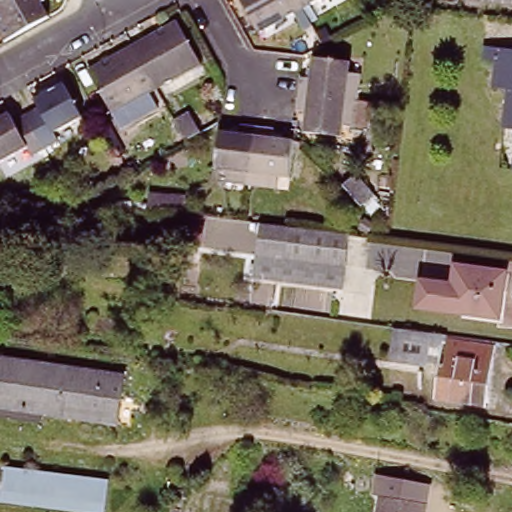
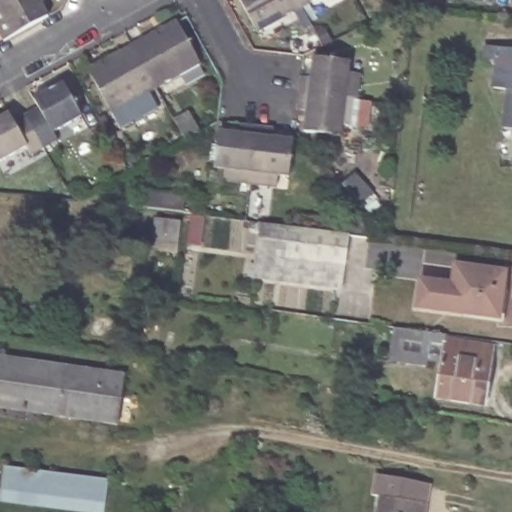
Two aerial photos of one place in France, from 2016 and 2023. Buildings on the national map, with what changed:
unchanged [(37,2),(46,17),(2,42),(0,39),(0,7),(0,0),(42,0),(37,2)]
unchanged [(300,31),(290,14),(253,34),(235,0),(315,0),(298,9),(307,27),(300,31)]
unchanged [(175,19),(200,64),(155,89),(131,43),(175,19)]
unchanged [(131,43),(155,89),(110,113),(87,68),(131,43)]
unchanged [(502,129),(507,90),(492,88),(495,61),(482,60),(483,47),(512,50),(512,130),(502,129)]
unchanged [(347,65),(345,75),(350,76),(347,105),(295,98),(297,80),(306,80),(309,60),(347,65)]
unchanged [(62,82),(80,115),(52,131),(55,137),(42,145),(25,112),(37,105),(33,98),(62,82)]
unchanged [(347,105),(343,130),(338,130),(335,141),(298,136),(302,115),(293,114),(295,98),(347,105)]
unchanged [(25,112),(42,145),(28,152),(25,146),(0,159),(0,117),(7,112),(11,120),(25,112)]
unchanged [(193,118),(200,130),(182,140),(176,127),(193,118)]
unchanged [(235,141),(237,134),(253,135),(247,186),(220,183),(221,176),(210,175),(215,138),(235,141)]
unchanged [(272,137),(271,145),(291,148),(287,185),(275,184),(274,190),(247,186),(253,135),(272,137)]
unchanged [(344,231),(337,283),(252,276),(260,221),(344,231)]
unchanged [(499,272),(493,318),(412,308),(415,281),(447,285),(450,267),(499,272)]
unchanged [(450,336),(449,341),(495,346),(490,380),(442,372),(443,365),(429,363),(428,370),(392,363),(397,329),(450,336)]
unchanged [(112,427),(0,408),(0,357),(120,379),(112,427)]
unchanged [(490,380),(487,405),(438,400),(442,372),(490,380)]
unchanged [(81,512),(22,501),(28,468),(105,482),(101,512),(81,512)]
unchanged [(420,512),(374,512),(377,498),(421,506),(420,512)]

